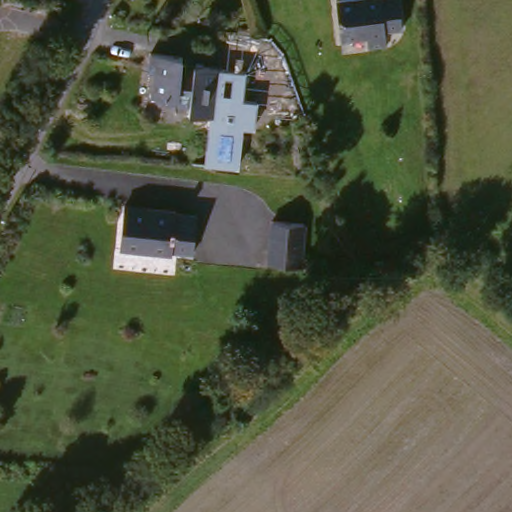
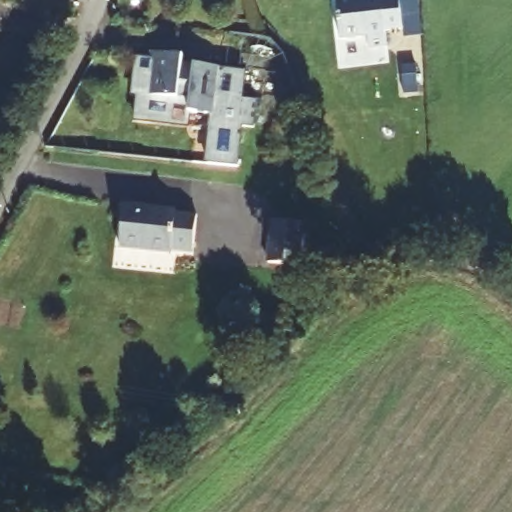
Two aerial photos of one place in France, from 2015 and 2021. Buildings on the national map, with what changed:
unchanged [(380,29),(382,45),(363,45),(363,35),(336,37),(334,0),(412,0),(414,27),(380,29)]
unchanged [(218,96),(210,95),(208,113),(184,111),(185,103),(161,100),(161,97),(144,95),(147,71),(143,70),(148,49),(182,53),(180,62),(222,67),(218,96)]
unchanged [(244,99),(258,101),(256,127),(243,127),(240,168),(202,164),(208,113),(210,95),(218,96),(222,67),(247,71),(244,99)]
unchanged [(193,216),(190,261),(117,255),(120,211),(193,216)]
unchanged [(265,224),(295,226),(292,267),(262,266),(265,224)]

